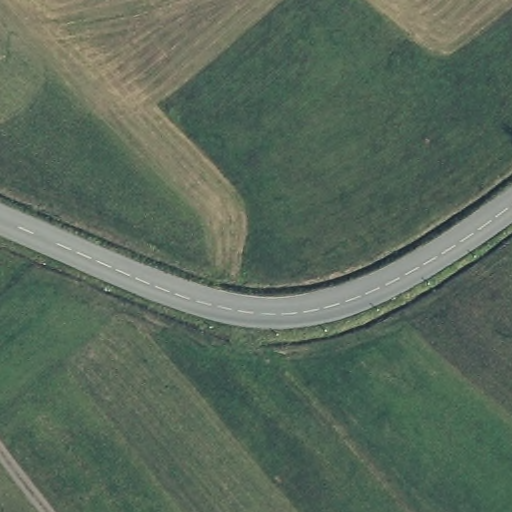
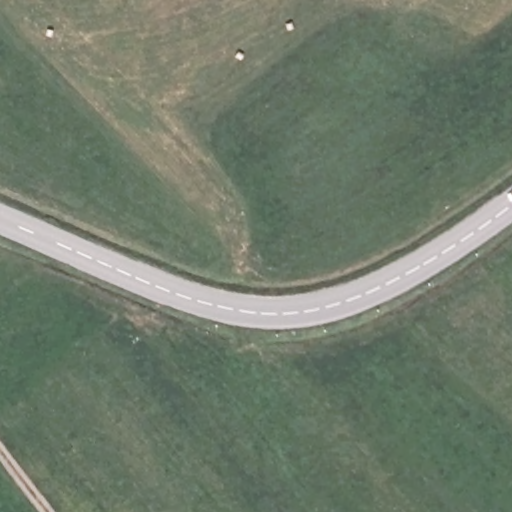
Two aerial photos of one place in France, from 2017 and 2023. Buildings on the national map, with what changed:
[]

